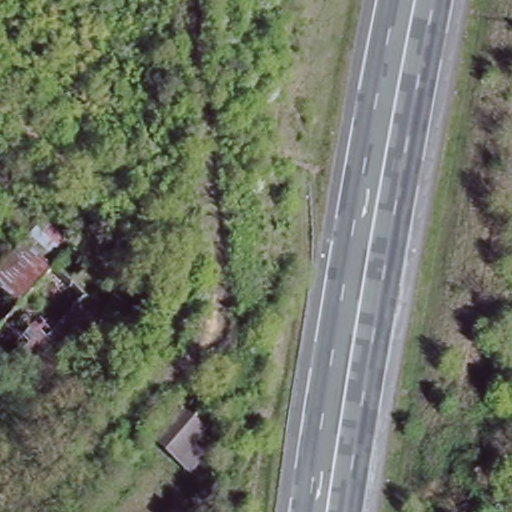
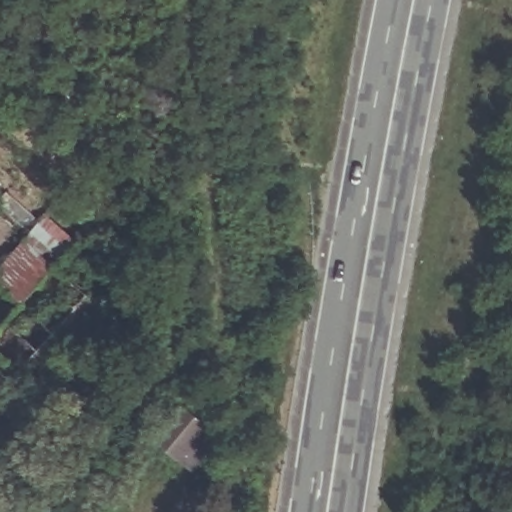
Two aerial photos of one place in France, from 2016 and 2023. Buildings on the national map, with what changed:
unchanged [(28,235),(58,258),(24,296),(0,276),(0,266),(28,235)]
unchanged [(116,270),(97,291),(58,258),(77,236),(116,270)]
unchanged [(24,296),(58,258),(97,291),(110,303),(42,382),(0,345),(0,324),(24,296)]
unchanged [(211,420),(185,453),(160,433),(186,400),(211,420)]

